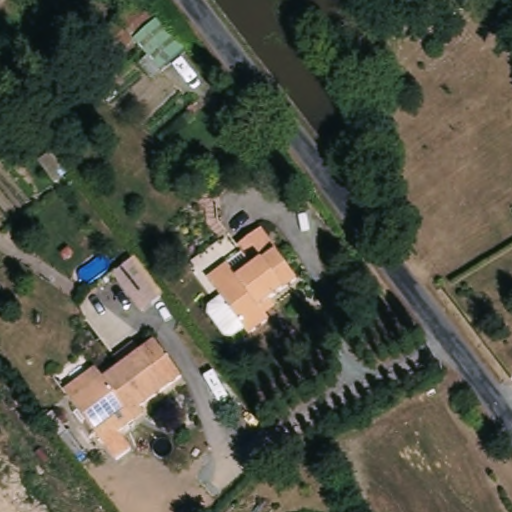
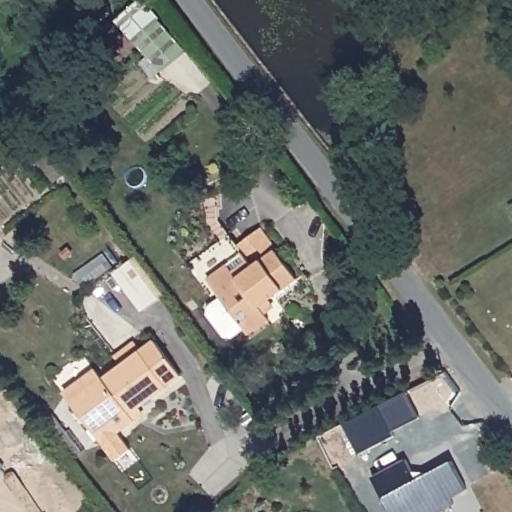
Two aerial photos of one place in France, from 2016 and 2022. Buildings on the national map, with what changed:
unchanged [(137,50),(130,44),(94,71),(83,57),(141,2),(162,24),(137,50)]
unchanged [(162,24),(185,50),(157,71),(137,50),(162,24)]
unchanged [(297,283),(298,283),(262,312),(272,326),(252,341),(247,335),(236,344),(229,344),(212,322),(212,315),(225,306),(222,304),(211,288),(230,273),(247,260),(239,251),(260,235),(275,254),(278,258),(297,283)]
new [(135,258),(163,294),(142,311),(114,275),(135,258)]
unchanged [(179,376),(164,387),(127,415),(132,422),(102,445),(70,402),(62,392),(91,370),(99,380),(111,371),(103,361),(129,341),(137,351),(152,340),(179,376)]
new [(406,391),(420,418),(392,432),(395,436),(359,455),(343,424),(379,406),(406,391)]
new [(412,472),(430,473),(451,461),(467,490),(451,499),(453,505),(440,512),(391,512),(372,478),(406,460),(412,472)]

